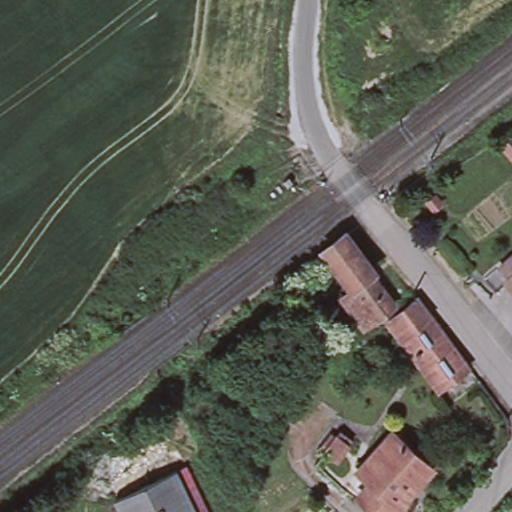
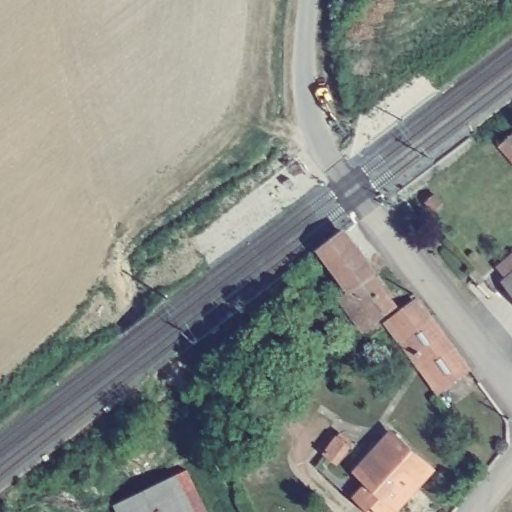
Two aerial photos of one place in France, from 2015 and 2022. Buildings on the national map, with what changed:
unchanged [(500,145),(512,133),(512,161),(500,145)]
unchanged [(352,291),(320,246),(342,230),(365,260),(358,265),(385,298),(368,312),(352,326),(340,305),(338,301),(352,291)]
unchanged [(504,296),(491,281),(512,263),(512,289),(504,296)]
unchanged [(415,295),(467,361),(437,382),(386,317),(415,295)]
unchanged [(435,468),(397,512),(395,512),(355,477),(401,425),(423,446),(442,462),(435,468)]
unchanged [(192,512),(123,512),(116,498),(172,470),(192,512)]

